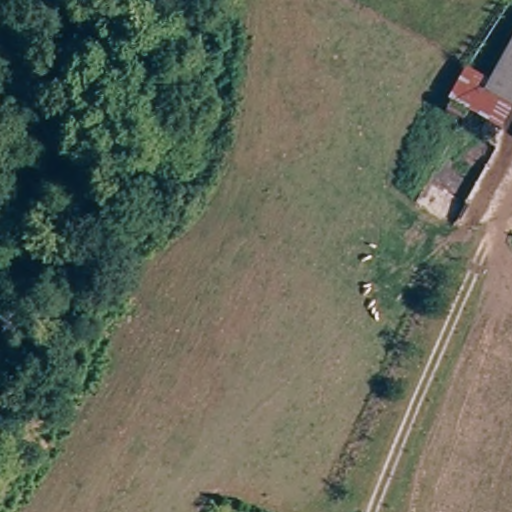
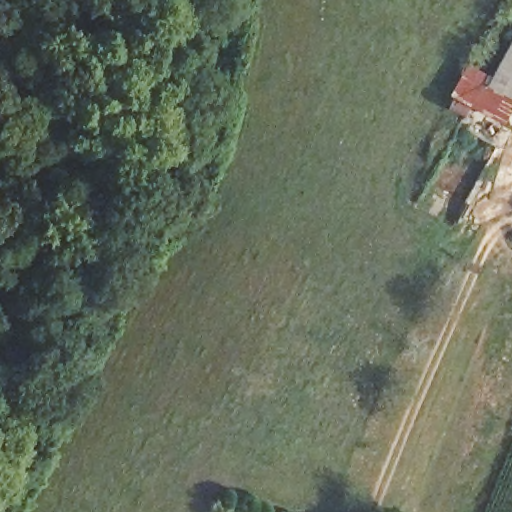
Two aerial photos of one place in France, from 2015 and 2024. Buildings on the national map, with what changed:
unchanged [(507,96),(488,86),(512,42),(512,98),(508,97),(507,96)]
unchanged [(496,119),(452,96),(465,72),(488,86),(507,96),(508,97),(502,107),(496,119)]

